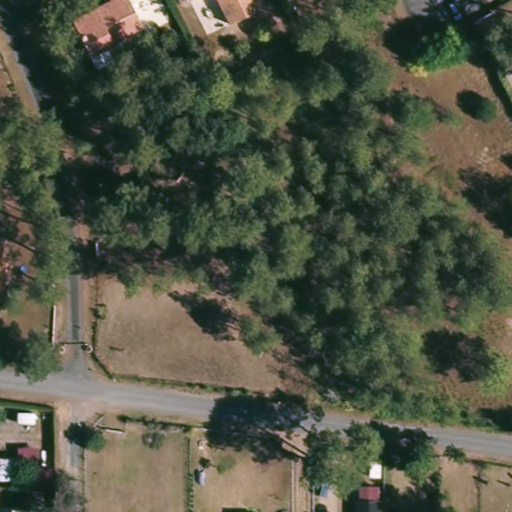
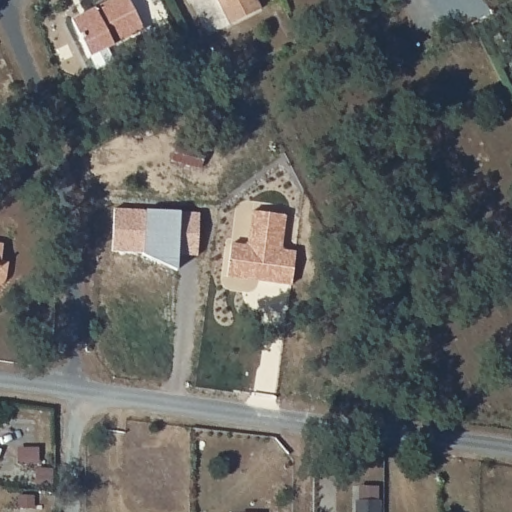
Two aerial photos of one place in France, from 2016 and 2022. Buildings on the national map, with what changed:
unchanged [(109,0),(126,0),(143,33),(90,60),(73,26),(111,6),(109,0)]
unchanged [(225,22),(214,0),(254,0),(257,5),(225,22)]
unchanged [(200,169),(169,159),(173,141),(205,146),(200,169)]
new [(115,209),(147,211),(179,214),(200,214),(198,255),(177,254),(177,269),(145,255),(145,252),(114,253),(115,209)]
new [(228,277),(231,243),(248,244),(252,210),(286,215),(283,249),(296,251),(292,286),(228,277)]
unchanged [(6,254),(3,274),(1,279),(0,280),(0,253),(6,254)]
unchanged [(12,452),(10,482),(0,481),(0,451),(12,452)]
unchanged [(354,493),(379,493),(379,512),(357,512),(354,493)]

